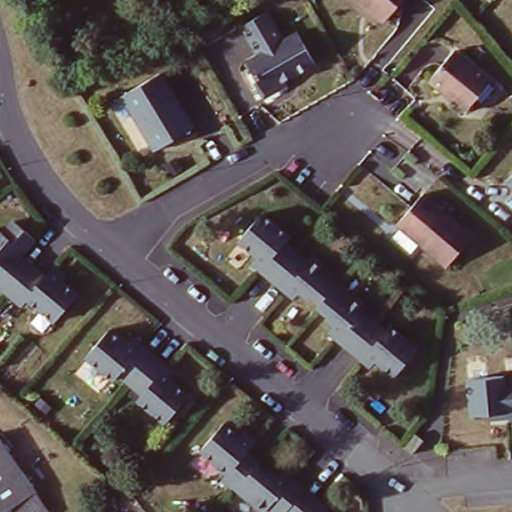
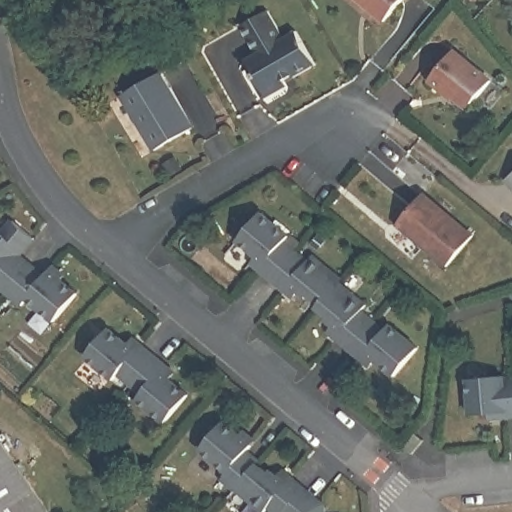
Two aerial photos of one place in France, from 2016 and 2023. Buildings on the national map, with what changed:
unchanged [(380,25),(349,0),(401,0),(380,25)]
unchanged [(261,97),(254,85),(240,63),(251,57),(235,29),(263,13),(278,40),(290,32),(310,65),(290,78),(287,75),(279,80),(281,85),(261,97)]
unchanged [(487,82),(466,109),(445,91),(441,95),(428,83),(450,54),(487,82)]
unchanged [(160,80),(191,132),(154,154),(123,101),(160,80)]
unchanged [(512,172),(512,185),(506,177),(512,172)]
unchanged [(469,236),(446,264),(398,224),(421,197),(469,236)]
unchanged [(264,237),(268,233),(299,257),(305,251),(395,326),(390,332),(415,352),(388,385),(358,360),(362,354),(317,316),(320,312),(296,293),(293,297),(277,283),(272,288),(248,268),(246,271),(217,247),(241,217),(264,237)]
unchanged [(27,237),(18,249),(49,276),(53,271),(80,293),(55,322),(28,300),(25,305),(11,295),(6,300),(0,294),(0,228),(8,220),(27,237)]
unchanged [(106,332),(118,343),(121,341),(170,381),(166,385),(186,401),(161,431),(133,406),(136,401),(113,381),(109,385),(81,361),(106,332)]
unchanged [(496,373),(498,380),(512,379),(512,418),(482,422),(480,415),(465,417),(461,377),(496,373)]
unchanged [(253,463),(266,474),(268,472),(288,487),(290,486),(323,512),(252,512),(212,480),(217,473),(194,455),(216,425),(256,459),(253,463)]
unchanged [(47,512),(5,512),(6,512),(0,505),(0,444),(55,506),(47,512)]

